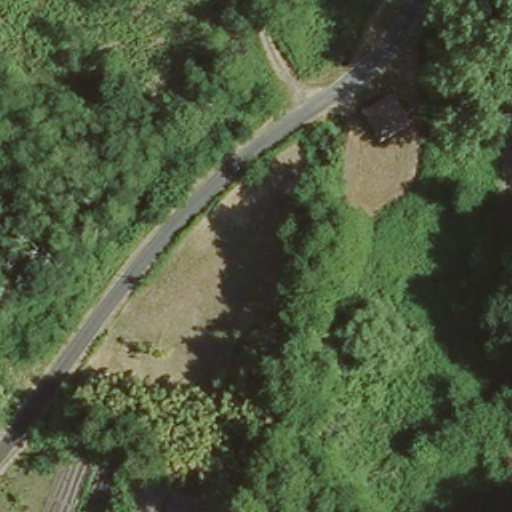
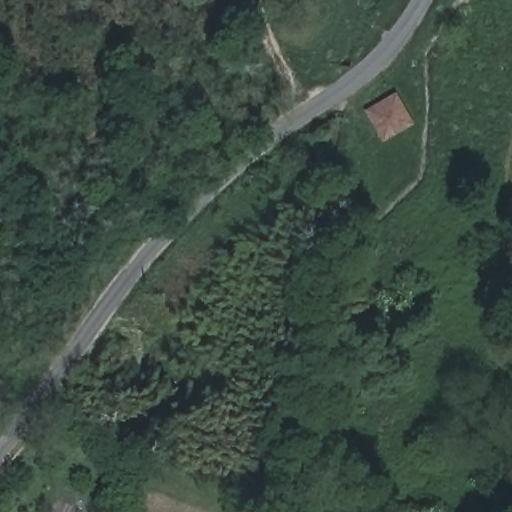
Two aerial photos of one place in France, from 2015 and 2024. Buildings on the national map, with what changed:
unchanged [(438,114),(405,131),(389,97),(421,81),(438,114)]

